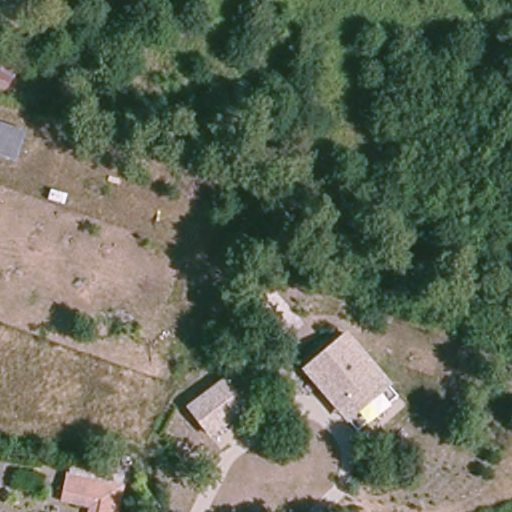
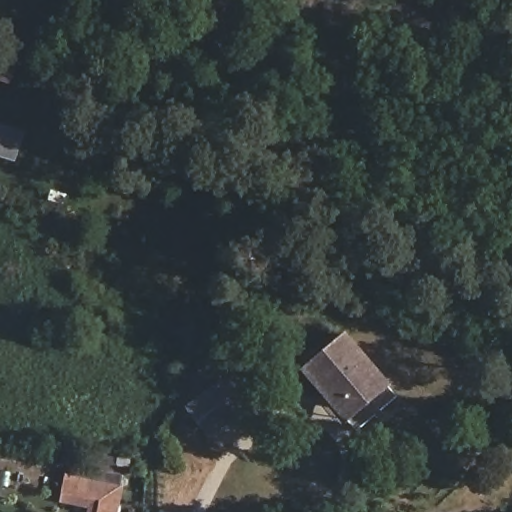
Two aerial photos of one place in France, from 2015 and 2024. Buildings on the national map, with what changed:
unchanged [(15,159),(0,155),(0,127),(21,135),(15,159)]
unchanged [(308,373),(318,365),(349,337),(392,386),(361,414),(351,422),(308,373)]
unchanged [(196,422),(185,408),(220,380),(242,407),(220,425),(207,435),(196,422)]
unchanged [(89,467),(104,470),(103,482),(117,483),(114,512),(86,512),(87,510),(56,506),(57,495),(59,476),(60,465),(89,467)]

